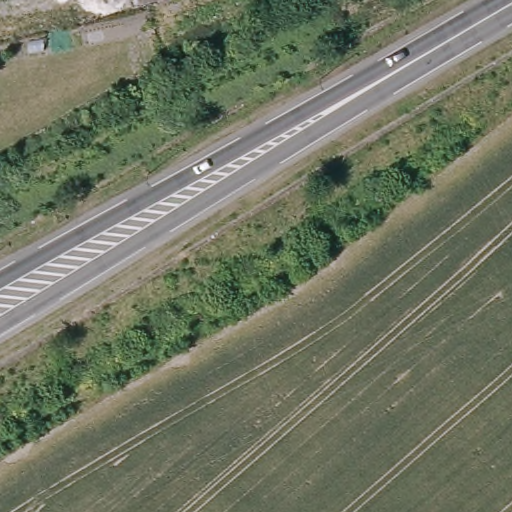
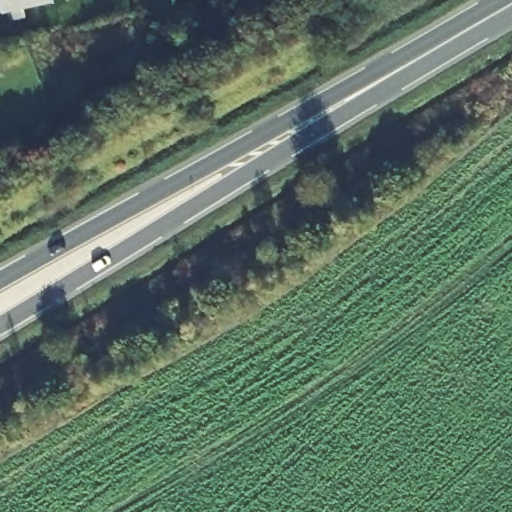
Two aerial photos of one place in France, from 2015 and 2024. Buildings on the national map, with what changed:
new [(25,8),(27,18),(12,19),(10,11),(5,12),(2,0),(54,0),(55,1),(25,8)]

